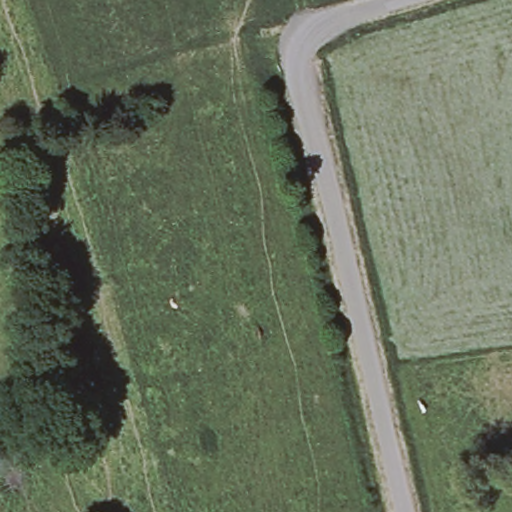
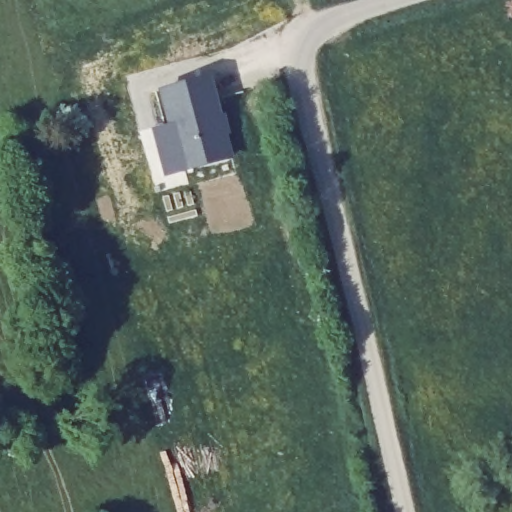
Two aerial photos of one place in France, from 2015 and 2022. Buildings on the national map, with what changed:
new [(183,168),(163,90),(210,77),(229,157),(183,168)]

